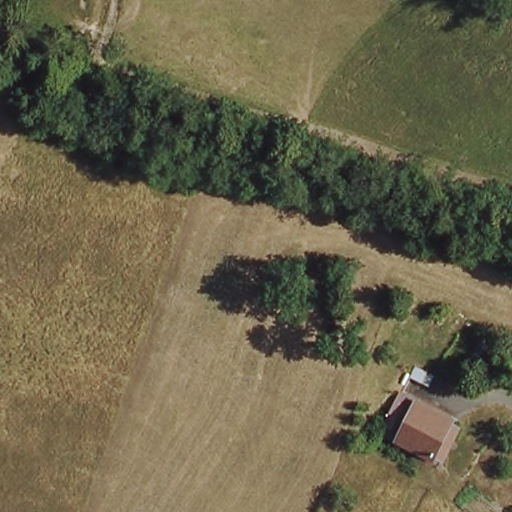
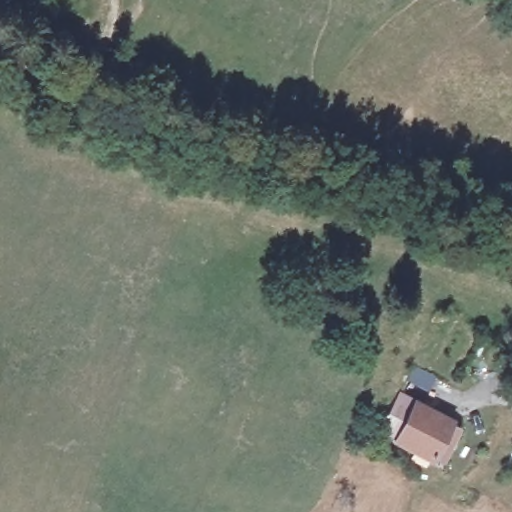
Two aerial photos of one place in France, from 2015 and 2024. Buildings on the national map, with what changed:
unchanged [(432,378),(427,387),(410,378),(415,368),(432,378)]
unchanged [(447,456),(438,451),(437,454),(387,428),(407,389),(457,415),(455,417),(463,422),(447,456)]

